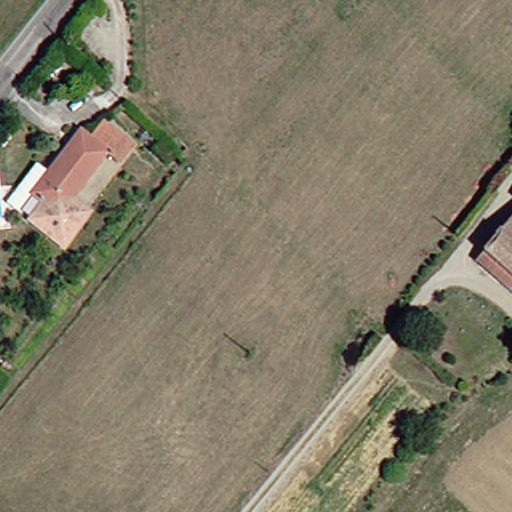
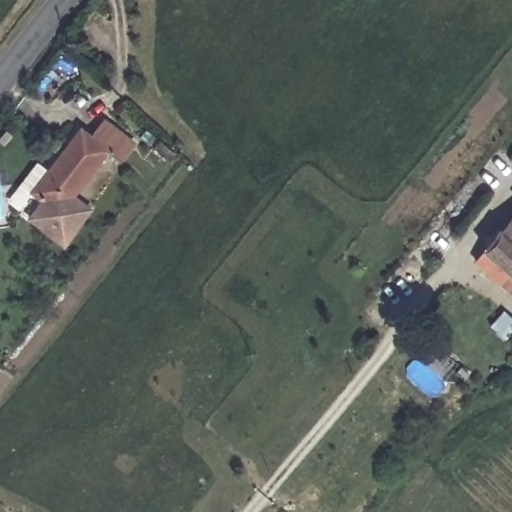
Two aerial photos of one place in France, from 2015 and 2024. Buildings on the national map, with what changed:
unchanged [(94,116),(124,139),(110,156),(99,147),(64,193),(80,205),(53,240),(19,214),(33,196),(22,187),(71,124),(81,132),(94,116)]
unchanged [(153,147),(160,140),(175,155),(169,161),(153,147)]
unchanged [(512,201),(512,295),(499,285),(465,255),(512,201)]

